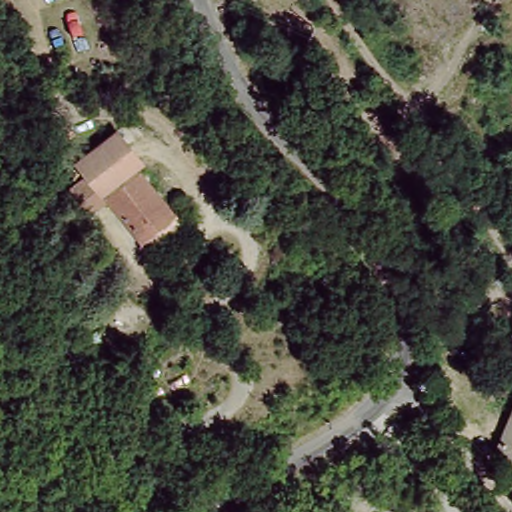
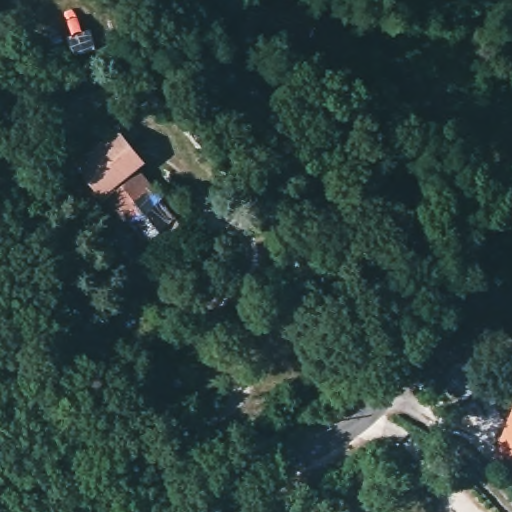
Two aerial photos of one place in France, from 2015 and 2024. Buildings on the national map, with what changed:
unchanged [(110,197),(91,211),(75,189),(91,175),(76,159),(120,125),(143,154),(101,186),(109,194),(110,197)]
unchanged [(151,247),(144,235),(141,235),(110,197),(109,194),(139,168),(175,210),(183,220),(151,247)]
unchanged [(499,452),(512,426),(512,459),(499,452)]

